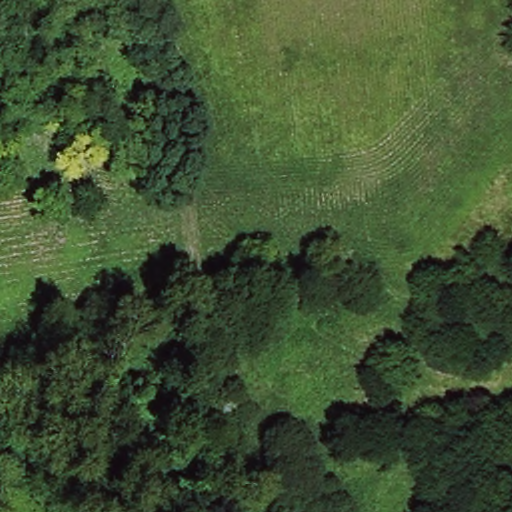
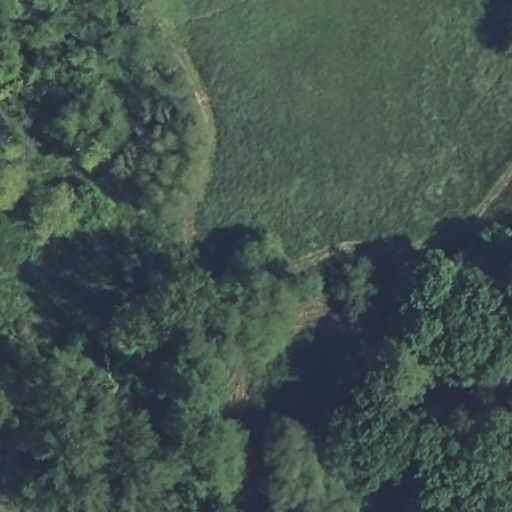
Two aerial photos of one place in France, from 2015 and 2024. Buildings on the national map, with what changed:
[]

